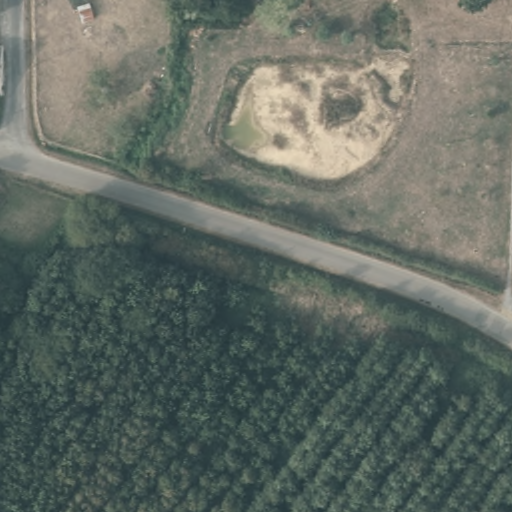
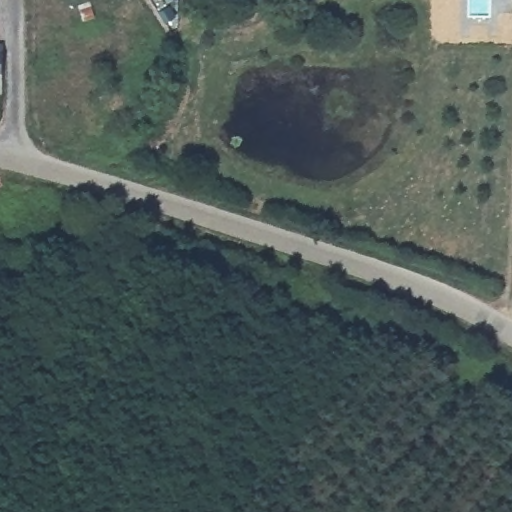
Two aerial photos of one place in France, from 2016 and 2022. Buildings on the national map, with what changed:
unchanged [(0,98),(0,48),(11,49),(8,98),(0,98)]

